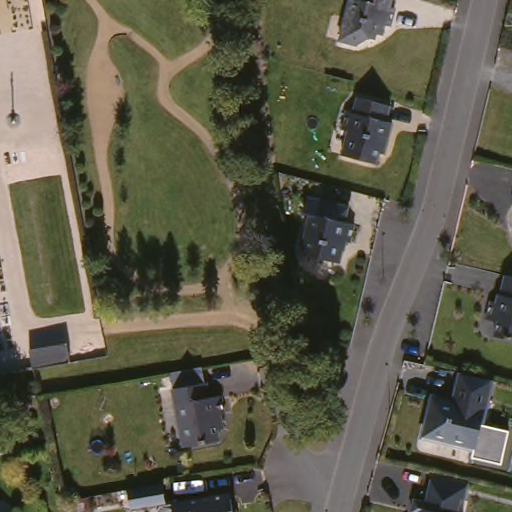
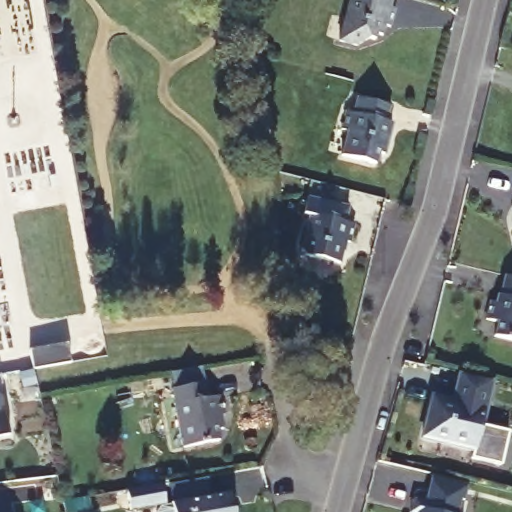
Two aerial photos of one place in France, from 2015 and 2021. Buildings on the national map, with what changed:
unchanged [(392,11),(388,29),(382,28),(380,37),(374,36),(373,41),(367,41),(354,48),(337,43),(347,0),(350,0),(356,1),(356,0),(390,0),(388,10),(392,11)]
unchanged [(386,120),(392,121),(384,153),(378,152),(376,163),(341,154),(347,130),(341,128),(345,110),(352,111),(356,96),(389,104),(386,120)]
unchanged [(349,206),(346,222),(354,224),(351,242),(346,241),(341,263),(307,256),(303,250),(309,216),(304,214),(308,198),(329,202),(349,206)]
unchanged [(512,274),(512,337),(496,334),(499,319),(488,317),(492,298),(499,300),(505,273),(512,274)]
unchanged [(72,346),(75,366),(38,372),(37,370),(34,356),(33,353),(72,346)]
unchanged [(473,449),(454,444),(453,449),(419,441),(428,400),(457,407),(458,400),(450,398),(456,376),(479,381),(488,383),(473,449)]
unchanged [(203,378),(206,394),(217,391),(221,410),(217,410),(219,424),(214,425),(216,436),(180,443),(169,385),(203,378)]
new [(10,434),(0,436),(0,390),(2,390),(10,434)]
unchanged [(462,483),(458,501),(454,501),(451,512),(409,512),(412,501),(419,502),(426,474),(462,483)]
unchanged [(164,486),(168,505),(133,512),(129,492),(164,486)]
unchanged [(222,495),(223,502),(233,500),(235,512),(175,512),(174,504),(222,495)]

